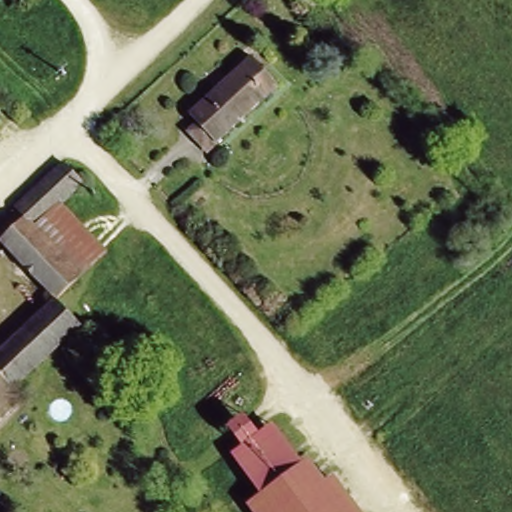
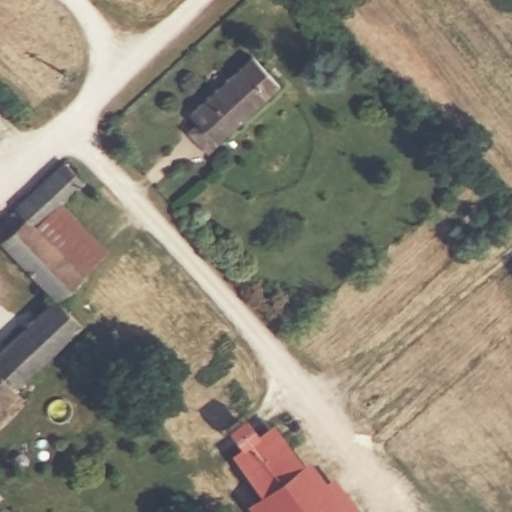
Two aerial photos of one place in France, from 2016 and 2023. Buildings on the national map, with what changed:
unchanged [(233,61),(249,48),(281,85),(262,100),(233,61)]
unchanged [(216,141),(184,104),(233,61),(262,100),(216,141)]
unchanged [(32,293),(39,285),(0,245),(0,223),(57,165),(77,185),(63,198),(30,231),(78,280),(60,298),(52,306),(70,324),(2,391),(12,401),(0,413),(0,344),(41,303),(32,293)]
unchanged [(114,247),(78,280),(30,231),(63,198),(114,247)]
unchanged [(256,432),(275,422),(302,459),(317,448),(363,512),(249,512),(244,506),(258,491),(227,453),(242,444),(225,424),(241,413),(256,432)]
unchanged [(0,496),(0,480),(8,489),(0,496)]

